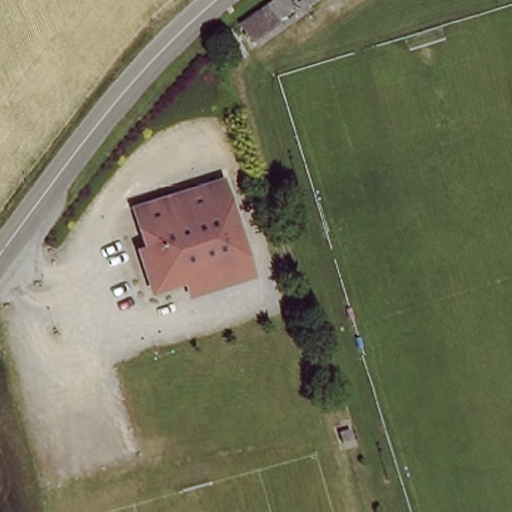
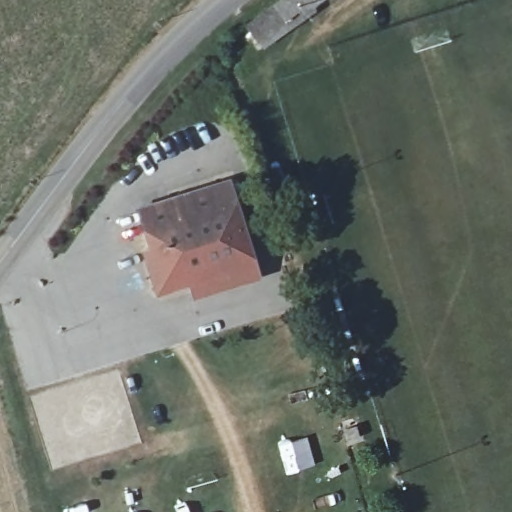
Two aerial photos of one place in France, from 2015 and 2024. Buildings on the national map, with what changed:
unchanged [(245,33),(290,0),(302,17),(257,50),(245,33)]
unchanged [(315,9),(309,0),(326,0),(315,9)]
unchanged [(145,254),(154,252),(141,210),(237,185),(266,282),(197,304),(193,285),(160,299),(145,254)]

